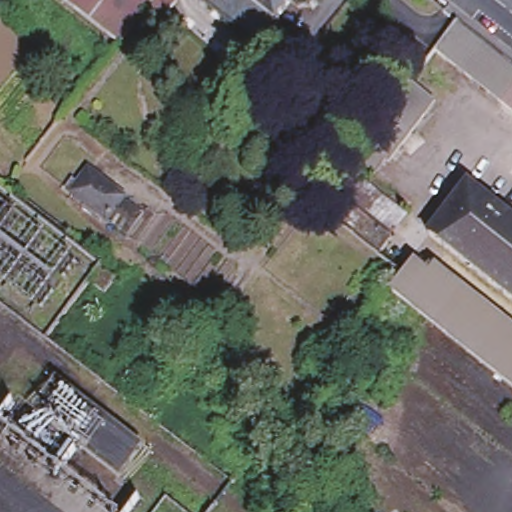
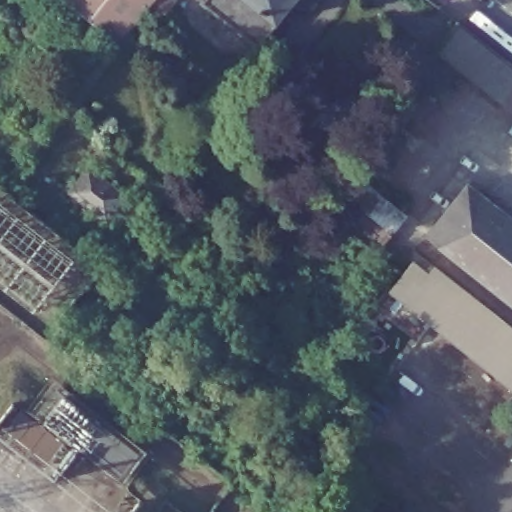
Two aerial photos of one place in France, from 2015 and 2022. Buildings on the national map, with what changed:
unchanged [(155,20),(141,8),(116,40),(66,0),(171,0),(164,9),(155,20)]
unchanged [(278,10),(281,13),(260,39),(210,0),(285,0),(278,10)]
unchanged [(512,75),(512,125),(444,70),(467,39),(512,75)]
unchanged [(402,266),(379,248),(319,198),(351,157),(356,161),(359,157),(371,166),(348,195),(392,230),(389,235),(414,255),(431,268),(437,261),(512,322),(512,382),(390,287),(404,269),(402,266)]
unchanged [(60,183),(76,161),(110,187),(131,203),(114,224),(95,209),(60,183)]
unchanged [(430,234),(469,183),(512,217),(512,247),(487,278),(430,234)]
unchanged [(512,247),(512,299),(487,278),(512,247)]
unchanged [(357,327),(342,346),(326,334),(341,314),(357,327)]
unchanged [(122,480),(27,407),(56,371),(137,434),(151,445),(137,462),(122,480)]

